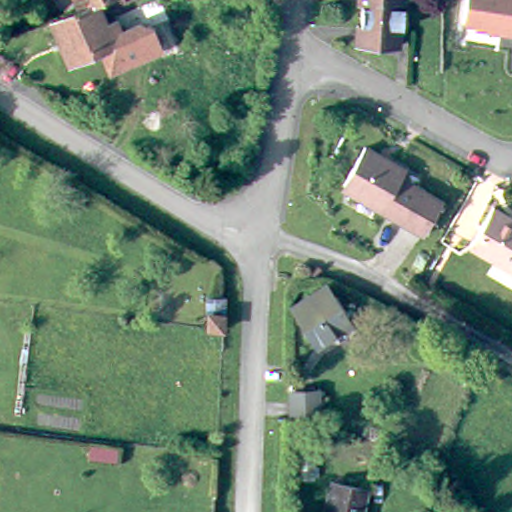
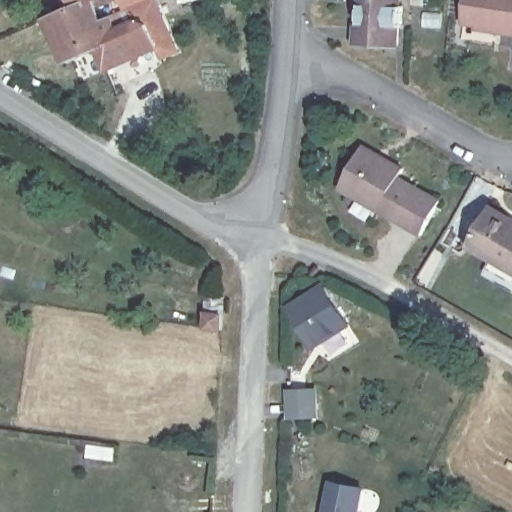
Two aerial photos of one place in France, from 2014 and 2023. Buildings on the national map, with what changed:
unchanged [(110,54),(105,44),(75,57),(68,42),(64,44),(60,37),(65,36),(55,14),(74,6),(84,2),(88,0),(105,0),(110,15),(120,11),(125,23),(129,21),(141,16),(157,19),(162,29),(167,41),(165,42),(125,59),(114,64),(110,54)]
unchanged [(84,2),(83,0),(88,0),(84,2)]
unchanged [(404,5),(408,5),(408,25),(404,25),(404,47),(362,47),(362,30),(365,31),(365,7),(361,7),(361,0),(404,0),(404,5)]
unchanged [(479,22),(465,20),(468,0),(512,0),(512,30),(499,28),(478,25),(479,22)]
unchanged [(403,171),(398,180),(440,204),(420,237),(378,212),(380,208),(342,186),(363,148),(403,171)]
unchanged [(470,245),(489,211),(493,205),(512,216),(512,270),(470,245)]
unchanged [(328,287),(349,322),(316,342),(293,306),(324,286),(328,287)]
unchanged [(209,296),(225,298),(223,329),(207,327),(209,296)]
unchanged [(445,347),(440,357),(423,347),(429,338),(445,347)]
unchanged [(290,390),(317,388),(318,417),(290,415),(290,390)]
unchanged [(312,477),(299,477),(298,443),(312,444),(312,477)]
unchanged [(332,512),(338,481),(367,486),(361,512),(332,512)]

